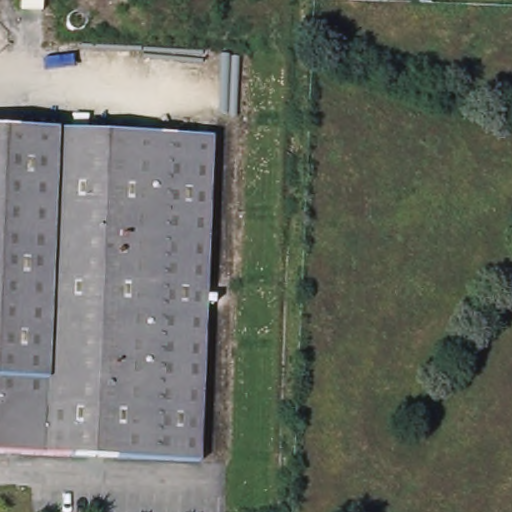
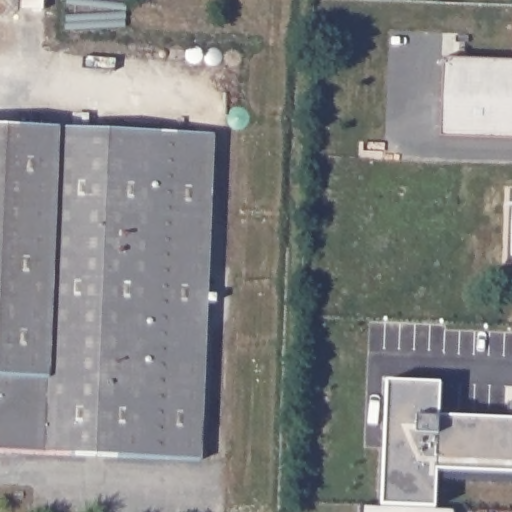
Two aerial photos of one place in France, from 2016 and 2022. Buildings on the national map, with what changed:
new [(512,62),(512,141),(440,138),(442,58),(512,62)]
unchanged [(201,456),(0,448),(0,122),(215,130),(201,456)]
new [(436,472),(435,510),(381,508),(386,383),(440,385),(438,418),(507,421),(508,403),(512,404),(512,476),(436,472)]
new [(361,507),(381,508),(435,510),(455,511),(455,512),(361,512),(361,507)]

